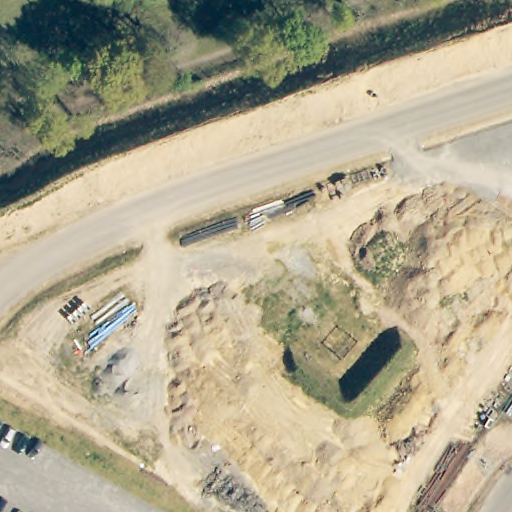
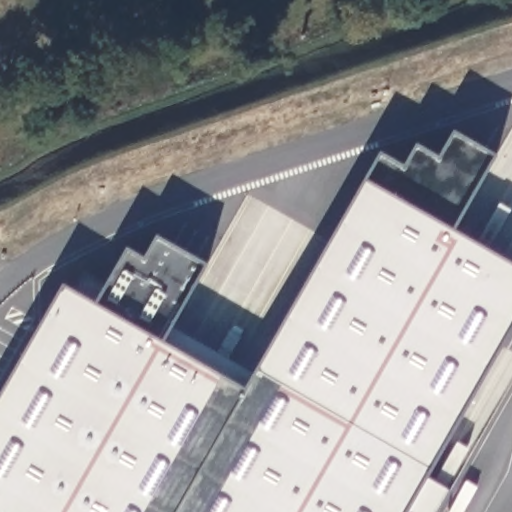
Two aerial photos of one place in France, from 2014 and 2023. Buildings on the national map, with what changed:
new [(512,266),(512,327),(426,478),(447,490),(434,512),(0,512),(0,393),(61,285),(72,292),(81,270),(103,284),(125,249),(142,258),(155,236),(204,266),(170,323),(253,372),(378,152),(402,165),(413,144),(437,156),(451,132),(495,159),(452,231),(512,266)]

